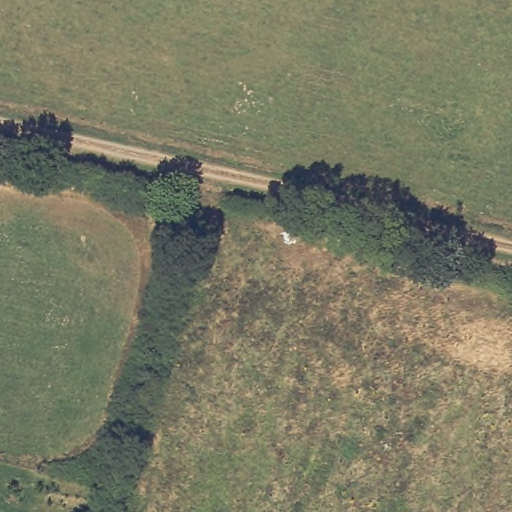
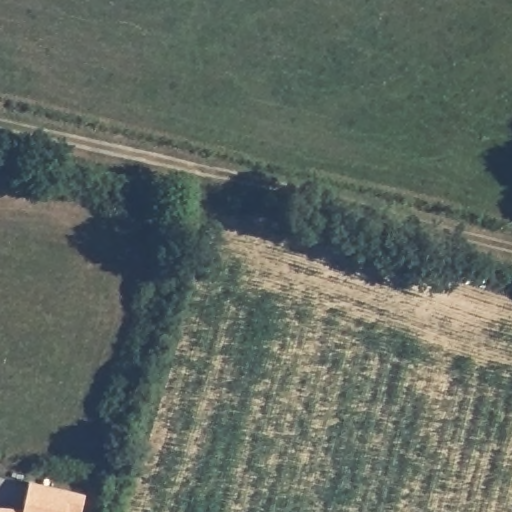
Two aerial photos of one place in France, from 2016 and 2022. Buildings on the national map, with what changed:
new [(22,508),(29,481),(86,494),(81,512),(0,512),(0,507),(22,508)]

